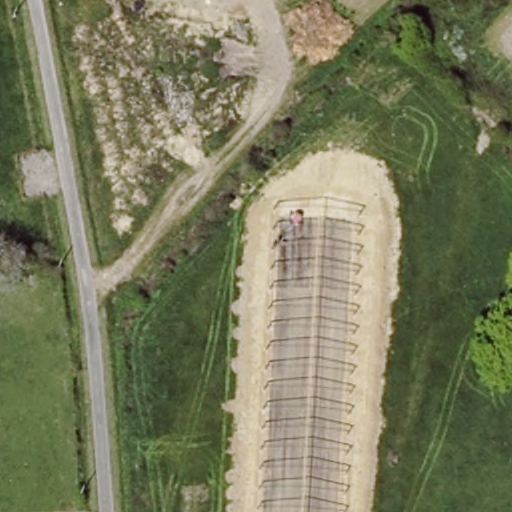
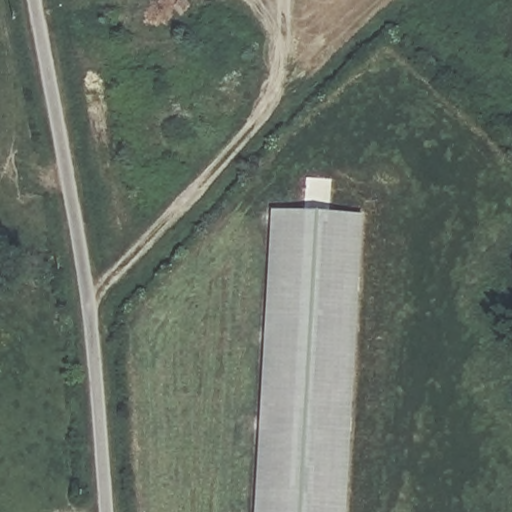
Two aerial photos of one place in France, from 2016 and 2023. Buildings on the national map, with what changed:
new [(281,217),(363,222),(348,512),(263,512),(281,217)]

